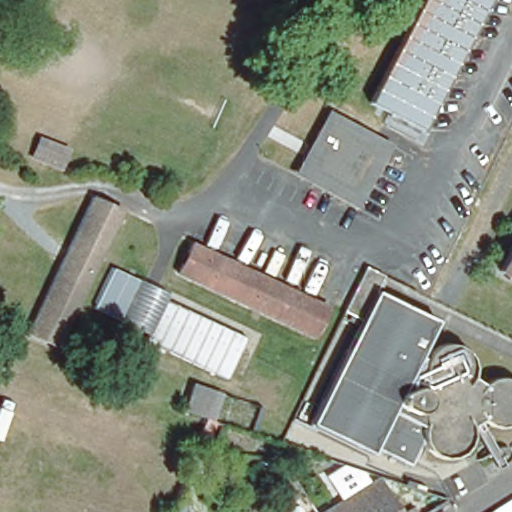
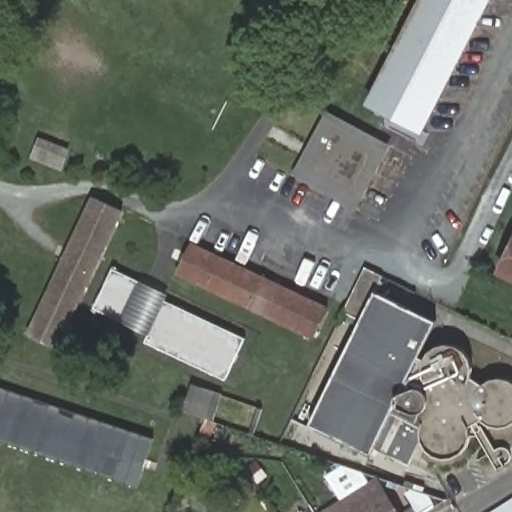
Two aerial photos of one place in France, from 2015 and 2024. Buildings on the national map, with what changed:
unchanged [(410,0),(483,0),(421,124),(365,95),(410,0)]
unchanged [(383,140),(356,201),(291,169),(322,110),(383,140)]
unchanged [(64,175),(29,160),(37,137),(70,151),(64,175)]
unchanged [(60,343),(30,329),(90,200),(113,211),(120,214),(113,230),(60,343)]
unchanged [(497,263),(512,235),(512,272),(497,263)]
unchanged [(177,277),(192,245),(327,307),(312,340),(177,277)]
unchanged [(432,330),(416,365),(422,368),(430,355),(438,347),(447,344),(459,347),(468,356),(472,366),(470,380),(483,388),(491,381),(498,377),(506,378),(512,382),(512,428),(504,430),(492,429),(482,421),(468,428),(469,433),(470,439),(467,449),(463,456),(456,461),(448,462),(436,460),(428,454),(421,445),(410,467),(372,454),(309,425),(357,323),(341,317),(365,267),(385,277),(377,292),(436,322),(432,330)]
unchanged [(114,327),(89,316),(111,270),(136,280),(114,327)]
unchanged [(224,381),(146,343),(151,335),(121,322),(140,285),(171,296),(167,302),(247,342),(224,381)]
new [(138,488),(0,442),(0,385),(155,437),(138,488)]
unchanged [(180,413),(190,386),(215,393),(206,421),(180,413)]
unchanged [(352,505),(348,499),(373,483),(381,486),(398,512),(356,512),(352,505)]
unchanged [(352,505),(356,512),(327,512),(348,499),(352,505)]

